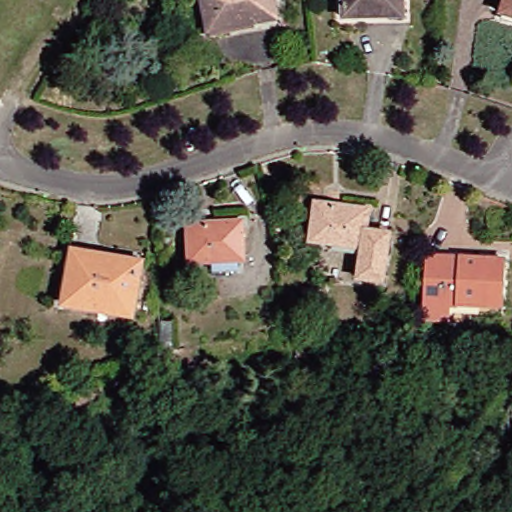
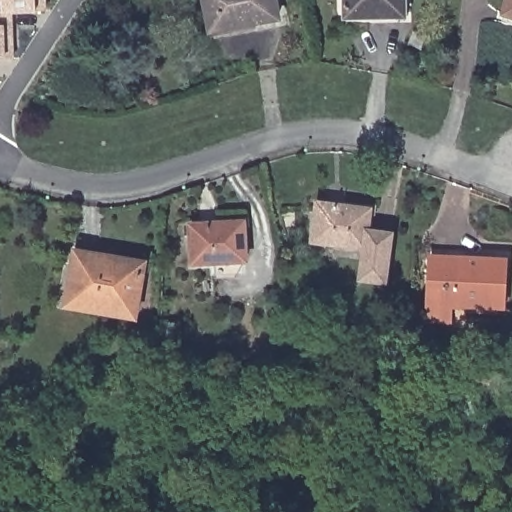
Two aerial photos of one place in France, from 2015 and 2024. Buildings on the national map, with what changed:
new [(14,12),(16,59),(0,60),(0,13),(4,12),(3,0),(49,0),(49,10),(14,12)]
unchanged [(268,0),(271,17),(206,30),(199,0),(268,0)]
unchanged [(363,11),(363,17),(338,17),(338,0),(398,0),(398,11),(363,11)]
unchanged [(498,16),(503,0),(512,0),(512,21),(498,16)]
unchanged [(361,231),(385,234),(379,282),(355,279),(359,247),(306,241),(311,202),(364,209),(361,231)]
unchanged [(185,230),(238,227),(239,265),(187,268),(185,230)]
unchanged [(444,305),(444,320),(421,319),(423,259),(462,261),(462,258),(498,259),(497,306),(444,305)]
unchanged [(138,270),(130,318),(62,306),(70,259),(138,270)]
unchanged [(329,299),(325,321),(308,318),(312,296),(329,299)]

